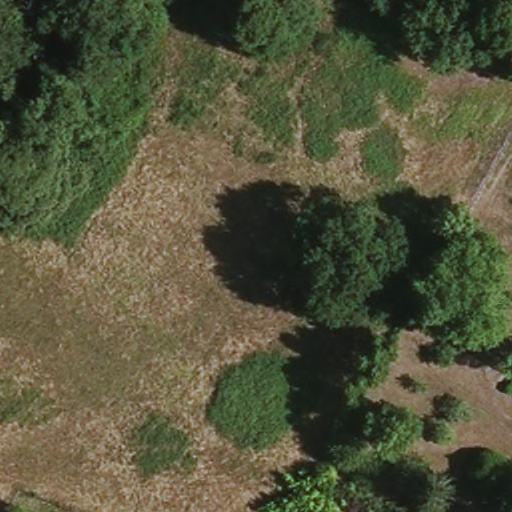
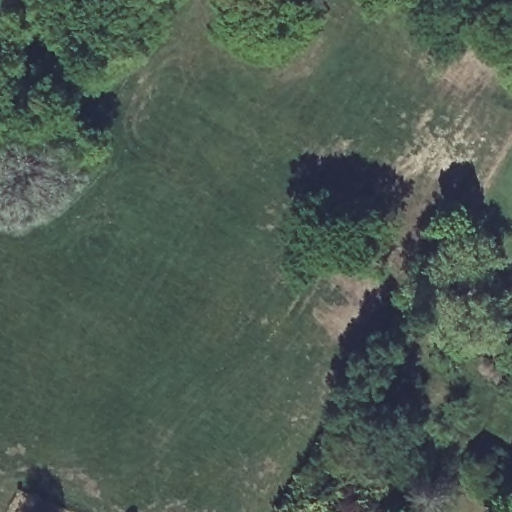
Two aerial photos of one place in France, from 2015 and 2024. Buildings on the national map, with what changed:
[]

